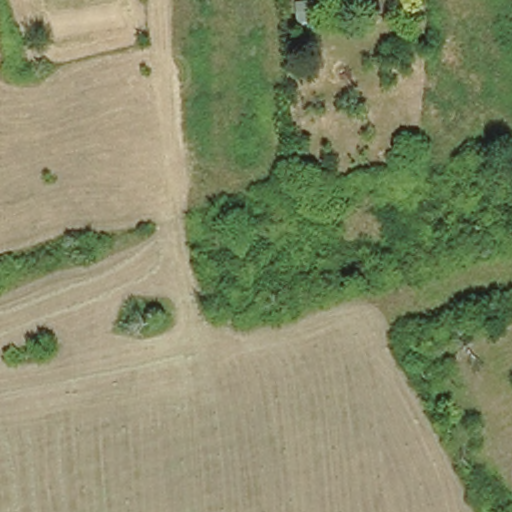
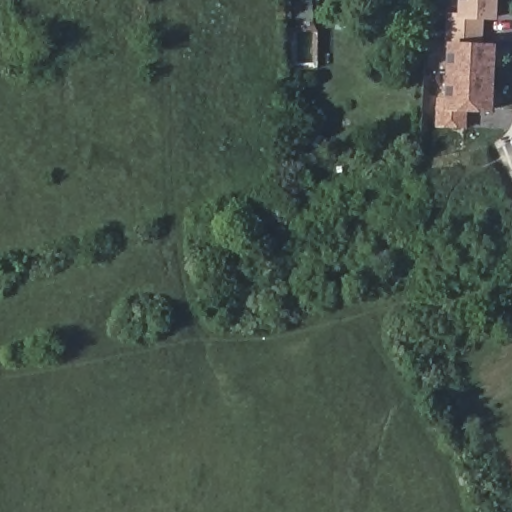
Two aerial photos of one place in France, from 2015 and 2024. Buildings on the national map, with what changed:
new [(449,99),(451,46),(448,46),(449,15),(461,16),(462,0),(496,0),(495,18),(483,17),(481,46),(494,47),(491,110),(467,109),(466,126),(439,125),(440,100),(449,99)]

